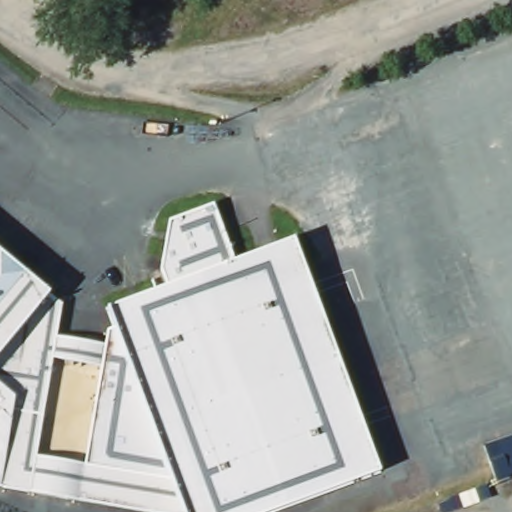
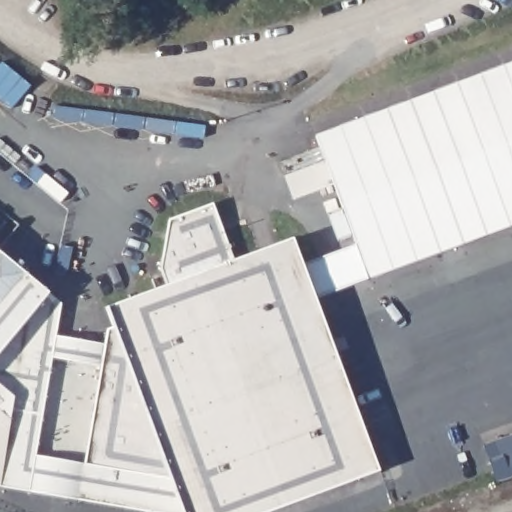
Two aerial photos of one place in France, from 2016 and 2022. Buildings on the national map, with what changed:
new [(512,63),(512,226),(372,277),(319,135),(512,63)]
unchanged [(103,345),(105,330),(113,327),(105,307),(164,285),(157,268),(166,220),(212,204),(232,260),(292,237),(380,471),(270,512),(182,512),(170,478),(83,463),(100,367),(103,345)]
unchanged [(0,253),(12,263),(46,292),(46,293),(59,304),(53,337),(49,358),(34,455),(27,491),(0,487),(0,253)]
unchanged [(53,337),(103,345),(100,367),(49,358),(53,337)]
unchanged [(512,434),(512,474),(493,480),(481,445),(512,434)]
unchanged [(83,463),(170,478),(182,512),(153,512),(27,491),(34,455),(83,463)]

